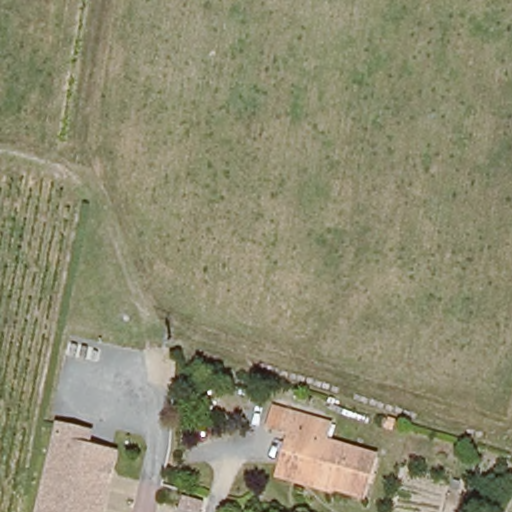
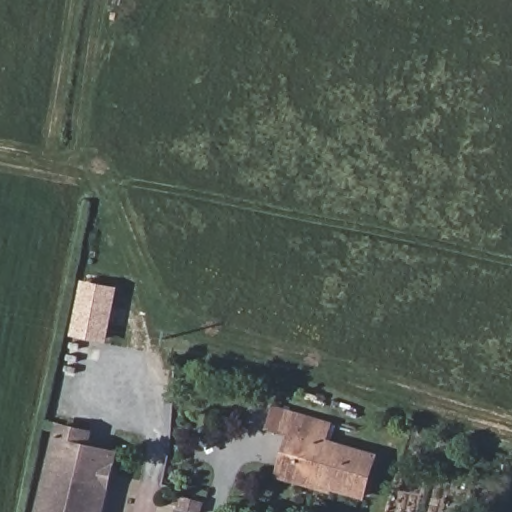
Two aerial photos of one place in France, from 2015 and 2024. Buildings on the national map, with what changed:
new [(82,279),(119,287),(108,343),(71,336),(82,279)]
unchanged [(316,436),(378,455),(367,494),(336,486),(335,490),(281,475),(293,436),(273,431),(279,409),(298,413),(320,419),(316,436)]
unchanged [(94,512),(34,512),(50,443),(56,418),(84,425),(81,440),(108,447),(94,512)]
unchanged [(178,505),(181,490),(202,496),(199,510),(178,505)]

